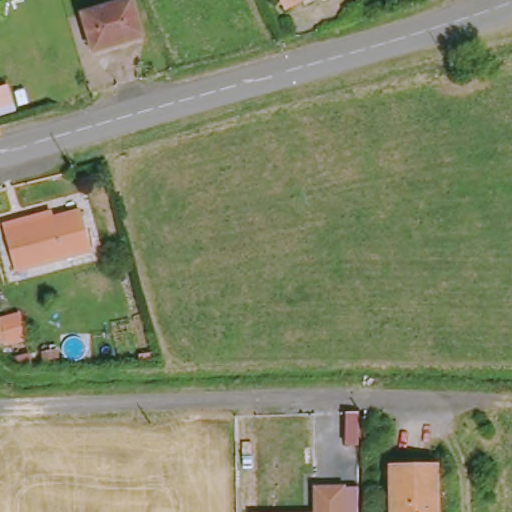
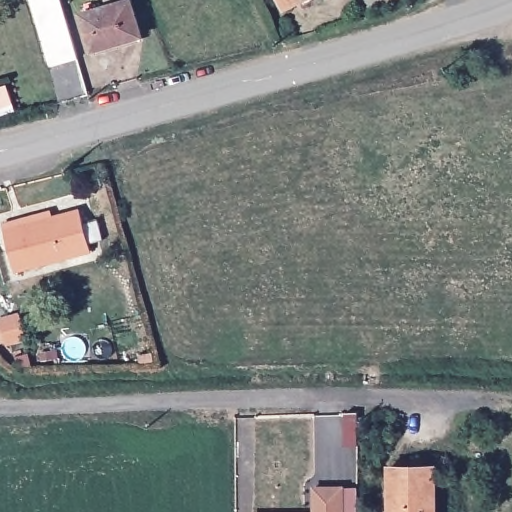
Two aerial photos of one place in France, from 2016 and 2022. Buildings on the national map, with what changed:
unchanged [(101,0),(127,0),(105,9),(101,0)]
unchanged [(280,0),(290,0),(282,4),(280,0)]
unchanged [(131,4),(144,37),(96,56),(82,24),(131,4)]
unchanged [(20,219),(22,225),(79,209),(90,252),(15,271),(2,224),(20,219)]
unchanged [(0,317),(19,312),(26,341),(5,345),(5,343),(0,344),(0,321),(1,321),(0,317)]
unchanged [(436,469),(437,512),(393,512),(392,470),(436,469)]
unchanged [(348,491),(348,512),(320,512),(320,491),(348,491)]

